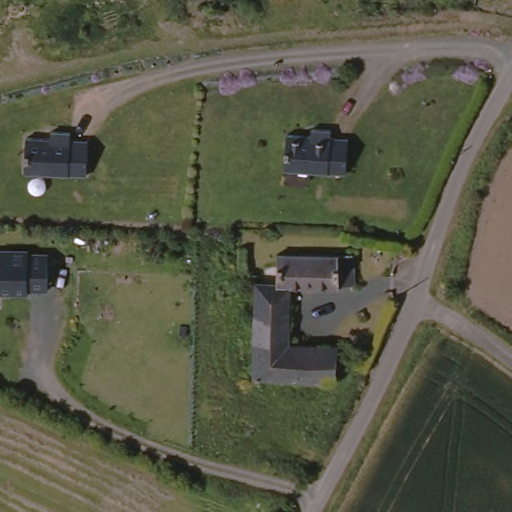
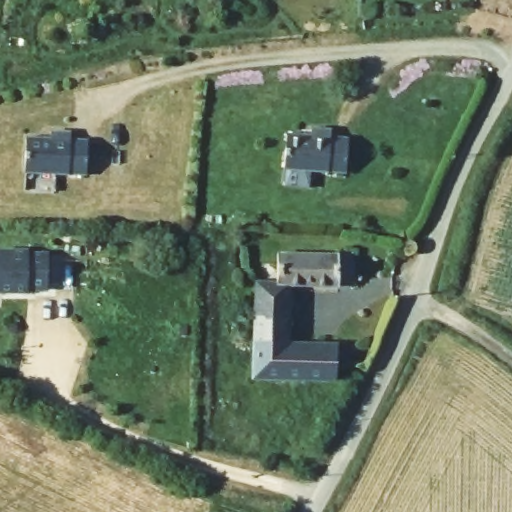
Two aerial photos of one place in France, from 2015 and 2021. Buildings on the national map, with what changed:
unchanged [(351,170),(289,167),(290,132),(314,132),(313,126),(333,126),(334,135),(351,135),(351,170)]
unchanged [(89,172),(28,175),(28,142),(51,140),(51,132),(69,131),(71,141),(87,139),(89,172)]
unchanged [(49,293),(27,293),(27,297),(0,297),(0,252),(28,252),(29,258),(48,258),(49,293)]
unchanged [(354,283),(342,288),(292,287),(292,281),(276,281),(276,255),(354,254),(354,283)]
unchanged [(292,281),(292,287),(291,345),(253,344),(256,281),(276,281),(292,281)]
unchanged [(307,381),(252,380),(253,344),(291,345),(336,346),(336,368),(336,380),(325,380),(307,381)]

